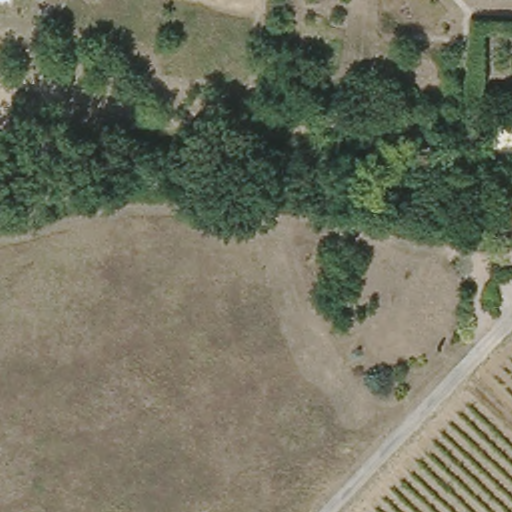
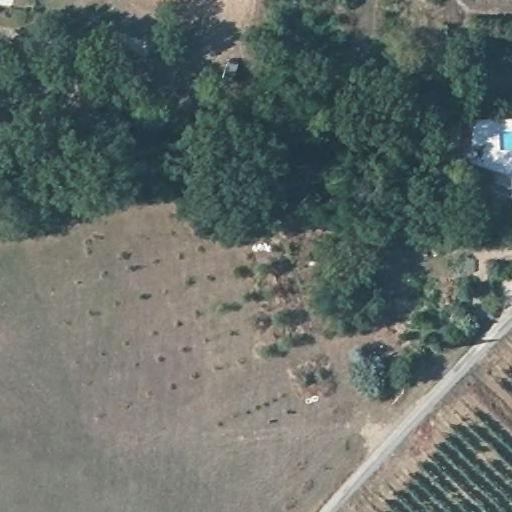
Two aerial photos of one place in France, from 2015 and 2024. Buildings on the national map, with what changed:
unchanged [(503,247),(512,243),(512,265),(511,265),(503,247)]

